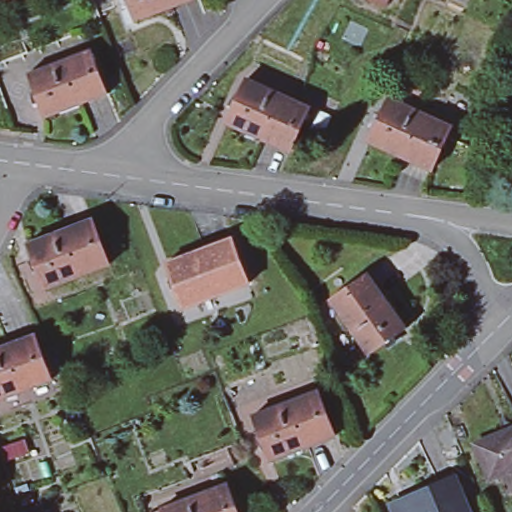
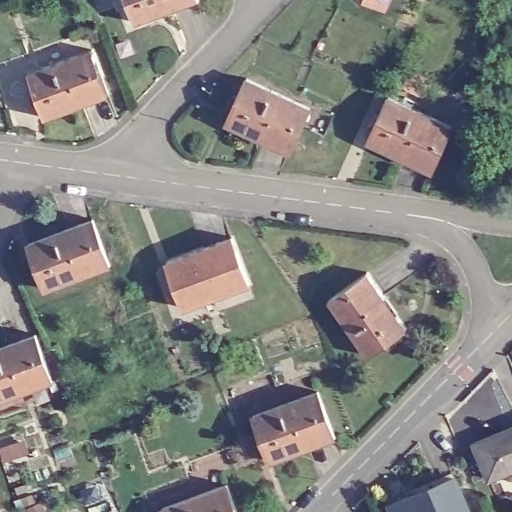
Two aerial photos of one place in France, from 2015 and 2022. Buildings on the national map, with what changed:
unchanged [(134,25),(125,0),(197,0),(197,1),(134,25)]
unchanged [(372,0),(386,0),(384,5),(372,0)]
unchanged [(90,52),(107,97),(44,120),(27,75),(90,52)]
unchanged [(308,112),(288,155),(227,126),(246,84),(308,112)]
unchanged [(450,129),(430,171),(367,143),(387,100),(450,129)]
unchanged [(90,223),(107,267),(43,291),(27,246),(90,223)]
unchanged [(230,241),(247,286),(183,310),(167,265),(230,241)]
unchanged [(367,277),(406,332),(367,360),(328,304),(367,277)]
unchanged [(52,383),(0,402),(0,350),(35,337),(52,383)]
unchanged [(317,395),(333,440),(270,463),(253,417),(317,395)]
unchanged [(491,480),(476,445),(512,430),(512,472),(491,480)]
unchanged [(452,480),(464,512),(392,512),(389,505),(452,480)]
unchanged [(224,486),(234,512),(162,512),(161,508),(224,486)]

